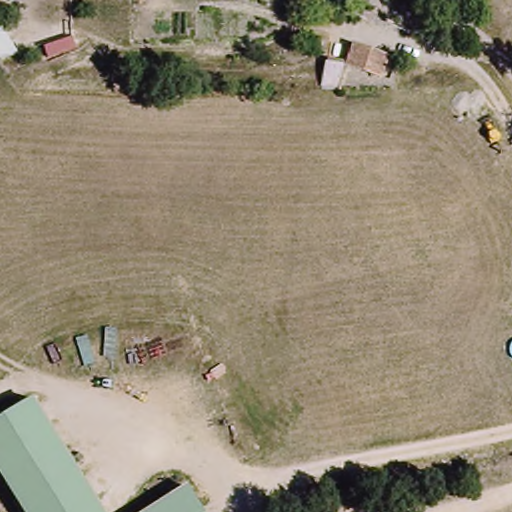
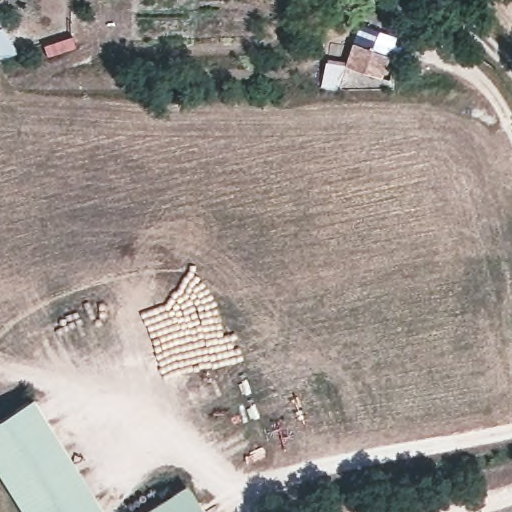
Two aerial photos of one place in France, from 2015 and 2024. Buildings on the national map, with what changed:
unchanged [(343,62),(351,42),(393,57),(385,81),(370,77),(370,86),(327,92),(324,63),(343,62)]
unchanged [(35,393),(106,512),(21,512),(0,476),(0,416),(35,393)]
unchanged [(203,512),(137,512),(185,481),(203,512)]

